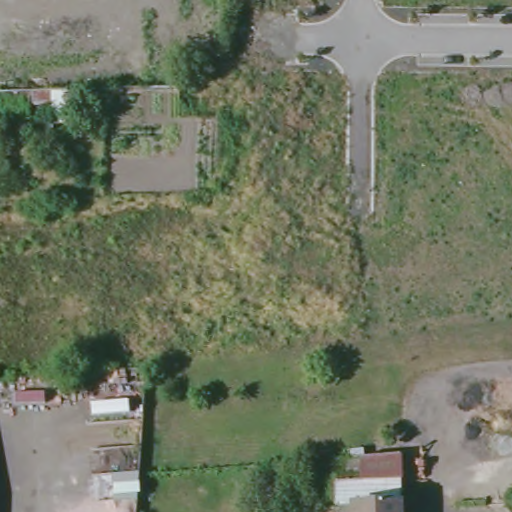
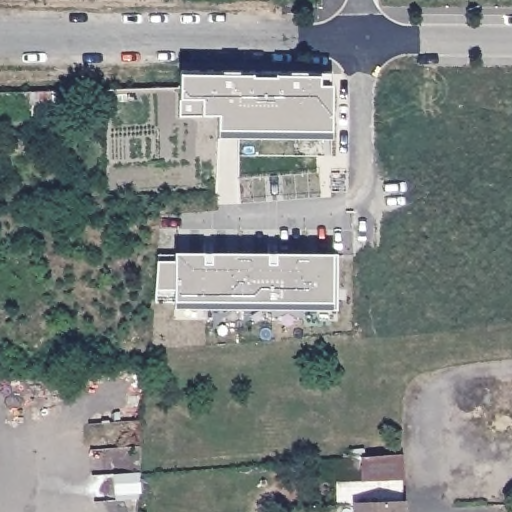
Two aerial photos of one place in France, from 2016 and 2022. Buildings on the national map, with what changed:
new [(219,139),(219,131),(219,118),(201,117),(179,117),(180,100),(181,76),(320,77),(329,75),(332,141),(219,139)]
new [(175,310),(176,303),(154,303),(158,262),(157,255),(176,253),(332,254),(332,310),(175,310)]
unchanged [(363,456),(363,468),(336,470),(335,458),(363,456)]
unchanged [(402,477),(403,512),(337,512),(336,480),(402,477)]

